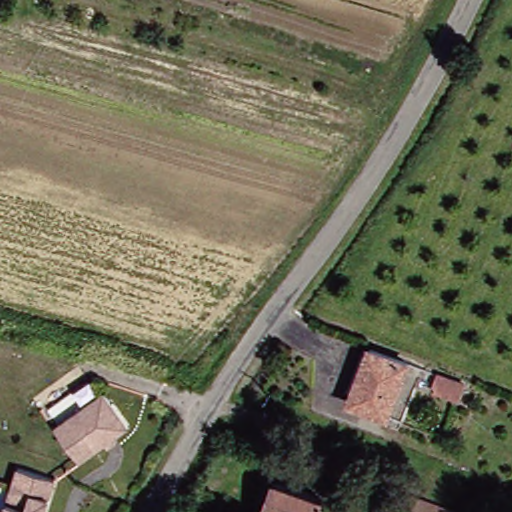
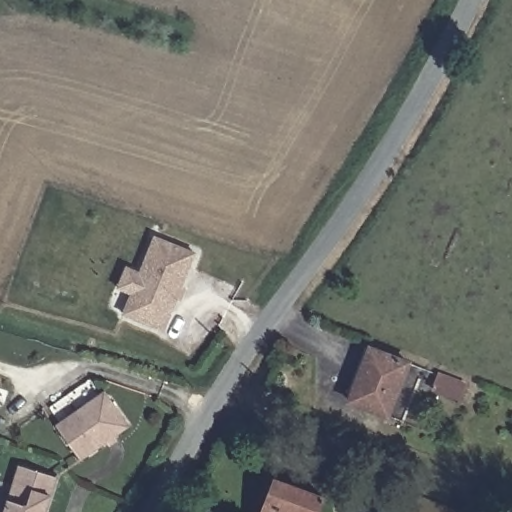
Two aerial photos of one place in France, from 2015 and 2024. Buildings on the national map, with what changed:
new [(130,296),(118,291),(127,267),(140,271),(154,236),(198,253),(165,334),(122,318),(130,296)]
unchanged [(394,414),(357,399),(380,345),(415,359),(394,414)]
unchanged [(472,383),(465,401),(436,390),(443,371),(472,383)]
unchanged [(117,450),(115,445),(88,464),(65,428),(114,394),(138,431),(123,440),(127,444),(117,450)]
unchanged [(28,468),(65,479),(54,512),(14,512),(28,468)]
unchanged [(325,512),(270,512),(282,478),(330,499),(325,512)]
unchanged [(469,512),(410,512),(420,491),(470,510),(469,512)]

